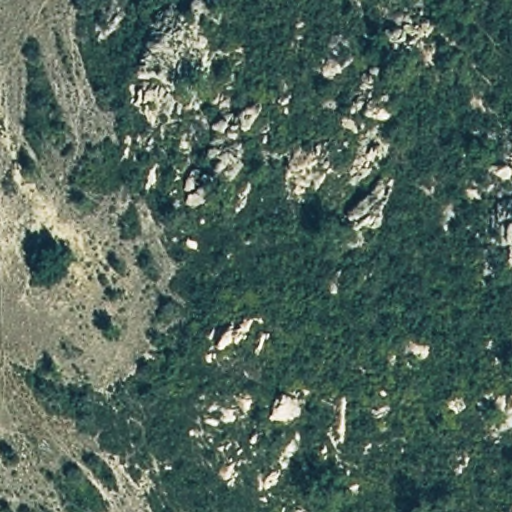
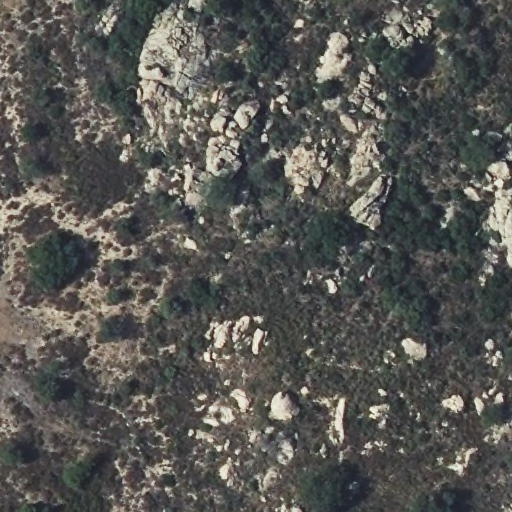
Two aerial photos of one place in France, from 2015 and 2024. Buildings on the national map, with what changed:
[]

